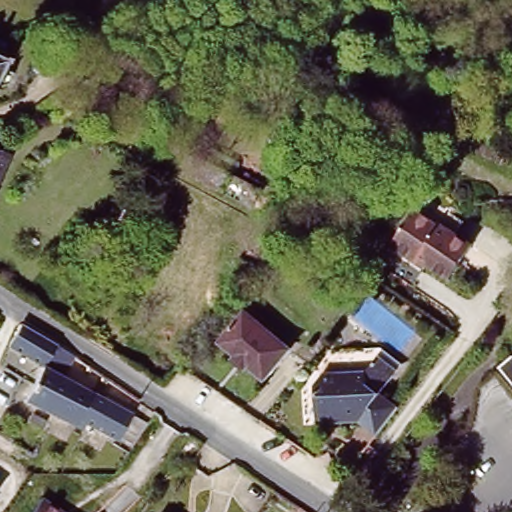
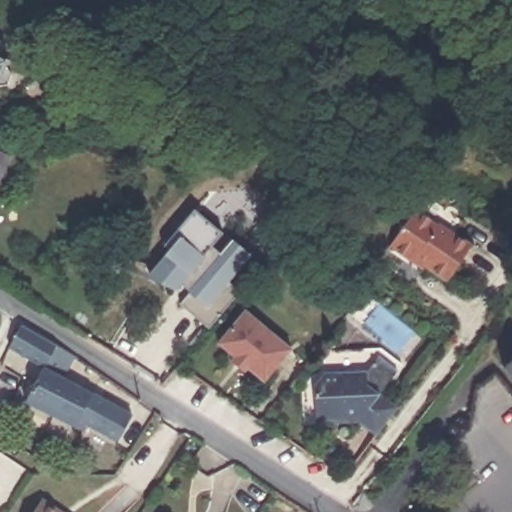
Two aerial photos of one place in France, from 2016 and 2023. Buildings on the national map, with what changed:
unchanged [(0,64),(0,59),(2,59),(0,64)]
unchanged [(3,67),(5,72),(1,80),(0,82),(0,65),(3,66),(3,67)]
unchanged [(193,137),(246,165),(243,170),(262,180),(259,186),(188,148),(193,137)]
new [(164,253),(160,247),(193,207),(222,232),(210,245),(219,253),(231,237),(250,254),(227,282),(240,293),(210,328),(179,303),(188,290),(181,283),(176,288),(161,284),(148,272),(164,253)]
unchanged [(411,255),(396,245),(421,210),(437,222),(451,231),(452,229),(474,245),(450,280),(429,265),(427,267),(411,255)]
unchanged [(266,386),(249,373),(246,377),(233,366),(236,361),(219,347),(248,314),(294,352),(266,386)]
unchanged [(78,361),(65,382),(135,420),(120,446),(87,429),(83,434),(27,403),(46,370),(12,350),(25,329),(78,361)]
unchanged [(320,418),(319,386),(328,375),(369,374),(380,359),(399,374),(383,396),(401,410),(379,437),(361,423),(321,424),(320,418)]
unchanged [(500,370),(512,359),(512,385),(500,370)]
unchanged [(66,512),(32,512),(43,497),(66,512)]

